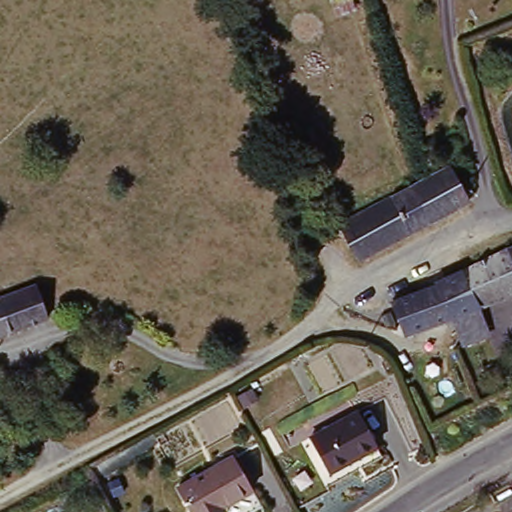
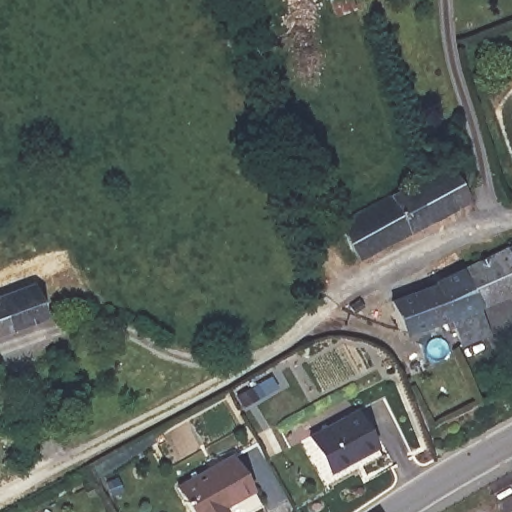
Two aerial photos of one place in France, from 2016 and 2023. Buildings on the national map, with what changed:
unchanged [(311,144),(313,150),(304,153),(302,148),(311,144)]
unchanged [(415,188),(452,169),(471,205),(430,226),(381,251),(360,263),(341,227),(415,188)]
unchanged [(507,251),(512,249),(512,262),(507,251)]
unchanged [(476,311),(457,272),(507,251),(512,262),(512,295),(476,311)]
unchanged [(487,337),(461,349),(449,322),(400,337),(390,304),(431,288),(430,283),(457,272),(476,311),(487,337)]
unchanged [(55,325),(2,345),(0,346),(0,308),(42,291),(55,325)]
unchanged [(365,414),(383,450),(336,474),(318,438),(365,414)]
unchanged [(229,458),(249,492),(221,508),(223,512),(187,512),(174,489),(229,458)]

